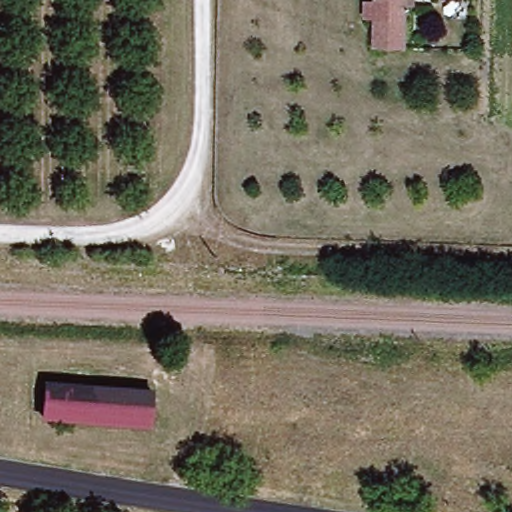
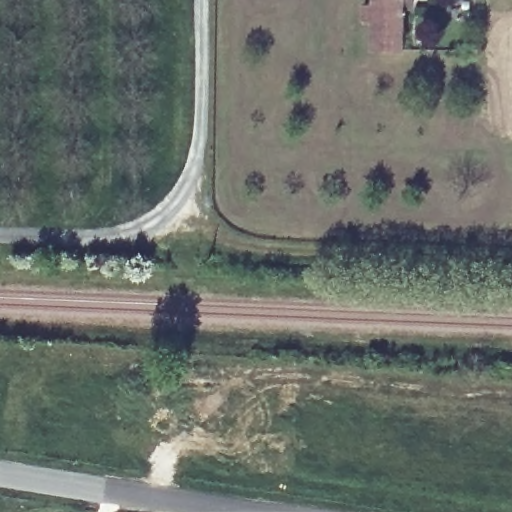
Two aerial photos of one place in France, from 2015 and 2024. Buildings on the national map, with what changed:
unchanged [(366,8),(367,0),(397,0),(395,49),(364,48),(366,23),(356,22),(356,8),(366,8)]
demolished [(38,418),(42,383),(143,395),(138,432),(38,418)]

